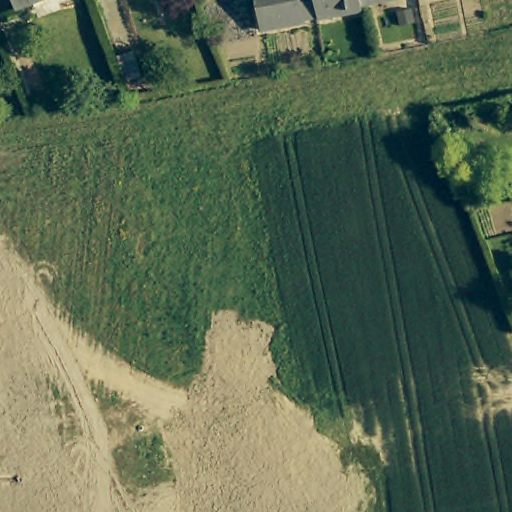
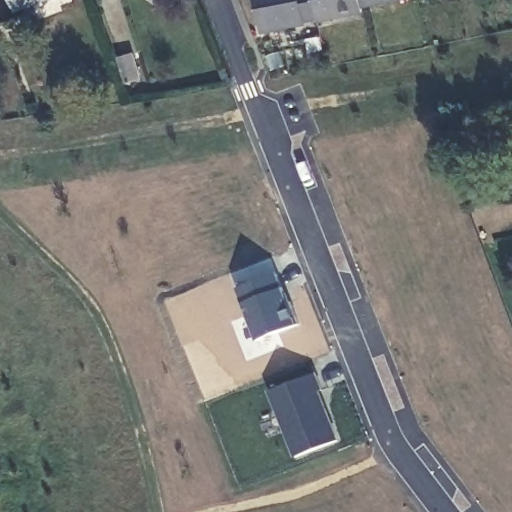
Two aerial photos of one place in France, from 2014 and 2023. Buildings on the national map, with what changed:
unchanged [(15,0),(45,0),(19,10),(15,0)]
unchanged [(359,13),(314,23),(313,20),(299,22),(300,26),(258,34),(252,0),(396,0),(357,7),(359,13)]
unchanged [(143,78),(128,83),(120,57),(135,51),(143,78)]
new [(274,259),(287,296),(289,295),(300,324),(259,340),(234,274),(274,259)]
new [(315,372),(323,390),(320,391),(338,440),(295,458),(269,390),(315,372)]

